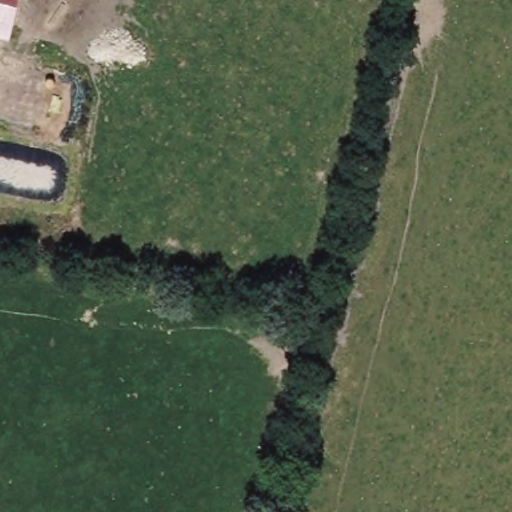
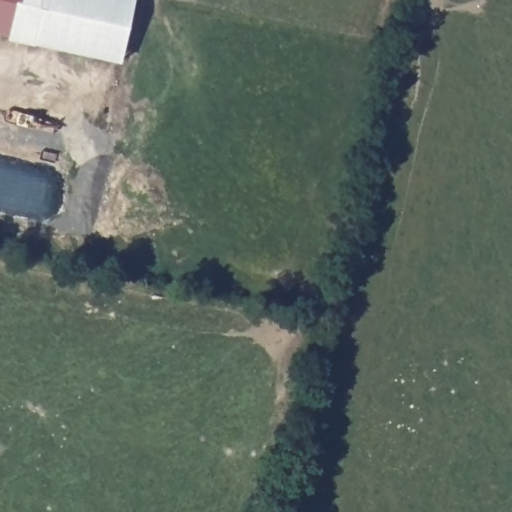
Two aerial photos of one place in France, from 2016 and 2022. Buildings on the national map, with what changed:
unchanged [(0,36),(0,0),(17,0),(9,37),(0,36)]
new [(17,0),(134,0),(122,61),(9,37),(17,0)]

